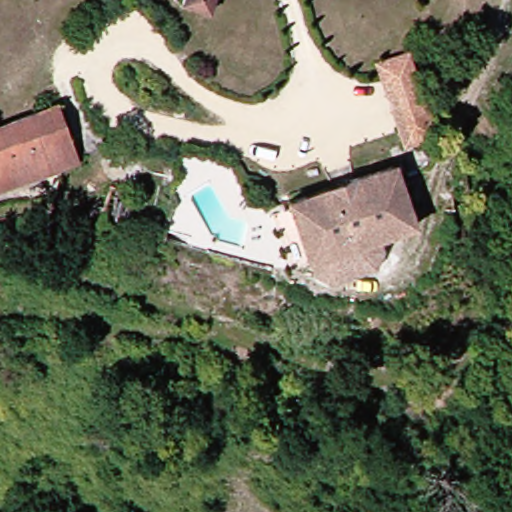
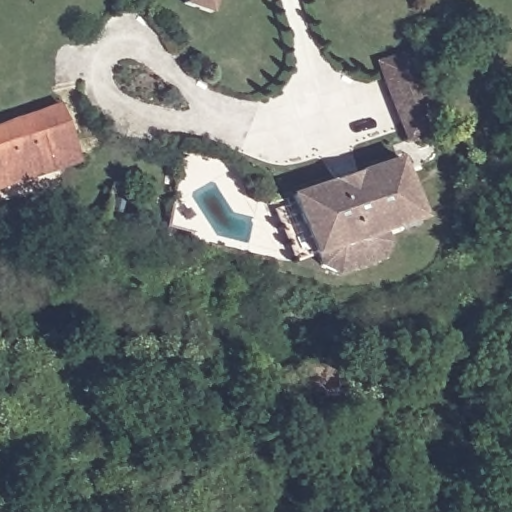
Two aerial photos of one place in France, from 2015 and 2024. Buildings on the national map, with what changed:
unchanged [(214,14),(188,6),(189,0),(219,0),(214,14)]
unchanged [(411,142),(404,144),(384,61),(416,54),(431,118),(436,136),(411,142)]
unchanged [(61,108),(81,162),(58,171),(36,117),(61,108)]
unchanged [(0,191),(0,131),(36,117),(58,171),(0,191)]
unchanged [(418,218),(381,234),(386,246),(391,257),(338,280),(327,285),(317,262),(314,263),(292,213),(289,206),(393,161),(418,218)]
unchanged [(314,263),(296,272),(274,221),(292,213),(314,263)]

